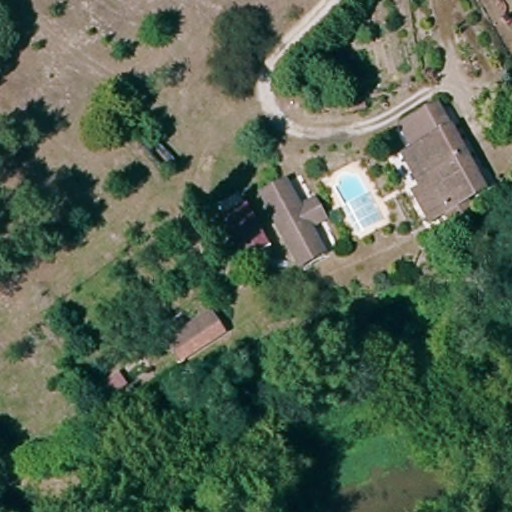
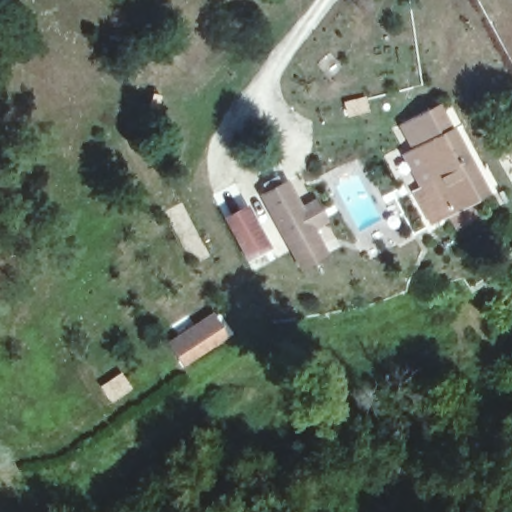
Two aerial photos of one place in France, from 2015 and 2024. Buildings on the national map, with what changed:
unchanged [(364,100),(366,111),(346,115),(344,103),(364,100)]
unchanged [(461,220),(453,207),(434,218),(418,188),(426,184),(437,178),(419,145),(406,122),(442,102),(490,187),(470,198),(478,211),(461,220)]
unchanged [(261,200),(283,188),(298,214),(306,209),(313,206),(323,222),(308,230),(307,231),(308,233),(322,257),(311,263),(300,269),(261,200)]
new [(223,217),(247,204),(271,248),(247,262),(223,217)]
unchanged [(160,341),(206,311),(227,339),(180,370),(160,341)]

